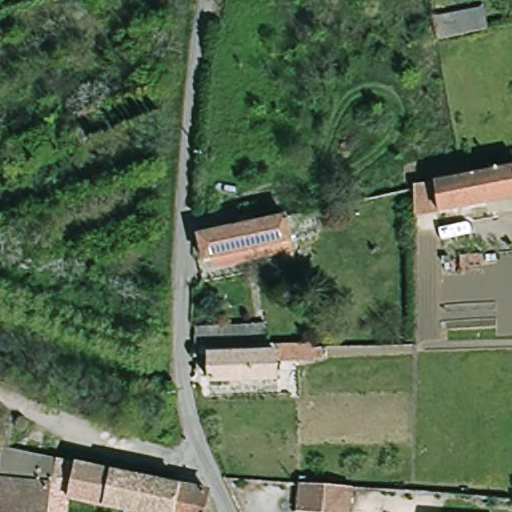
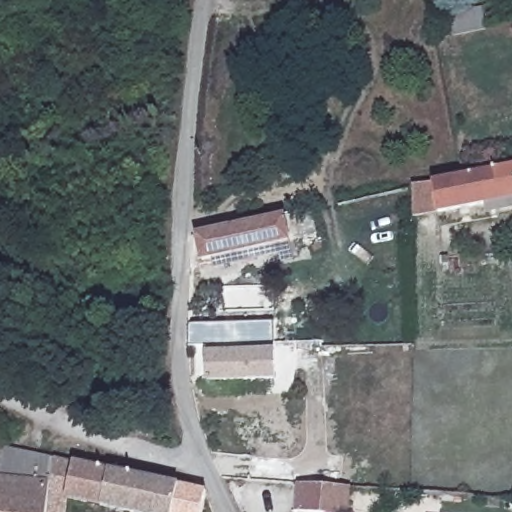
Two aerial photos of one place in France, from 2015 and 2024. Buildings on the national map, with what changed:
unchanged [(434,16),(482,7),(486,28),(481,29),(439,37),(434,16)]
unchanged [(512,168),(512,204),(450,217),(447,204),(426,205),(426,182),(443,182),(512,168)]
unchanged [(283,263),(281,252),(220,267),(218,259),(201,263),(195,237),(323,210),(325,216),(325,218),(313,220),(317,235),(292,241),(294,250),(291,250),(294,261),(283,263)]
unchanged [(201,345),(198,345),(199,327),(267,323),(268,342),(201,345)]
unchanged [(318,342),(319,360),(279,362),(280,378),(214,382),(212,355),(201,356),(201,345),(268,342),(268,345),(318,342)]
unchanged [(6,421),(3,451),(3,454),(0,453),(0,419),(6,421)]
unchanged [(3,454),(3,451),(60,461),(57,480),(55,496),(54,512),(0,512),(0,492),(3,454)]
unchanged [(145,477),(147,467),(172,472),(170,482),(184,485),(179,512),(126,512),(80,502),(55,496),(57,480),(60,461),(145,477)]
unchanged [(184,485),(211,491),(208,512),(179,512),(184,485)]
unchanged [(329,487),(349,488),(348,512),(297,512),(298,485),(329,487)]

